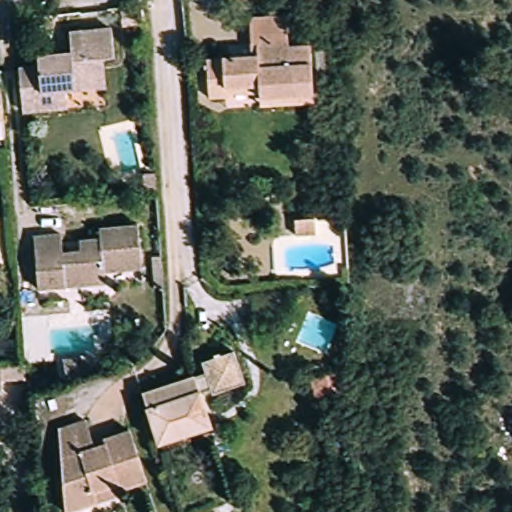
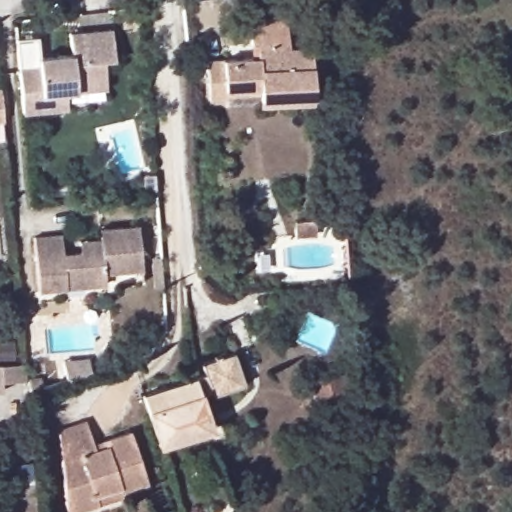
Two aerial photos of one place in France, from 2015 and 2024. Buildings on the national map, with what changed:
unchanged [(302,3),(301,0),(326,0),(326,3),(302,3)]
unchanged [(254,63),(254,24),(286,23),(286,56),(309,55),(310,103),(256,106),(254,92),(227,94),(226,103),(209,103),(208,66),(254,63)]
unchanged [(88,92),(68,93),(69,111),(25,114),(21,72),(40,71),(40,60),(75,57),(73,35),(115,31),(118,62),(103,63),(104,90),(88,92)]
unchanged [(0,125),(0,113),(1,124),(0,125)]
unchanged [(59,236),(61,254),(86,251),(86,240),(99,239),(98,228),(134,225),(138,268),(102,271),(103,283),(82,286),(80,280),(79,274),(63,275),(64,287),(37,290),(30,239),(59,236)]
unchanged [(205,378),(201,367),(233,356),(243,388),(211,399),(210,394),(199,398),(194,381),(205,378)]
unchanged [(20,381),(6,388),(0,396),(0,364),(23,365),(20,381)]
unchanged [(329,376),(333,395),(329,396),(313,400),(308,384),(329,376)]
unchanged [(159,449),(155,436),(144,398),(194,381),(199,398),(207,422),(211,434),(159,449)]
unchanged [(82,428),(92,458),(103,454),(101,447),(126,438),(141,488),(116,496),(113,490),(89,499),(93,509),(83,512),(62,512),(55,436),(82,428)]

